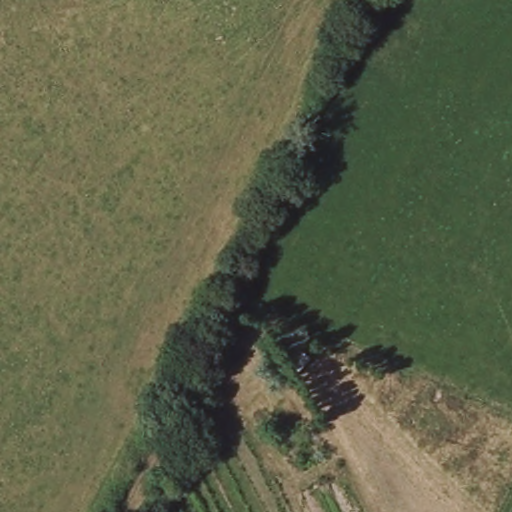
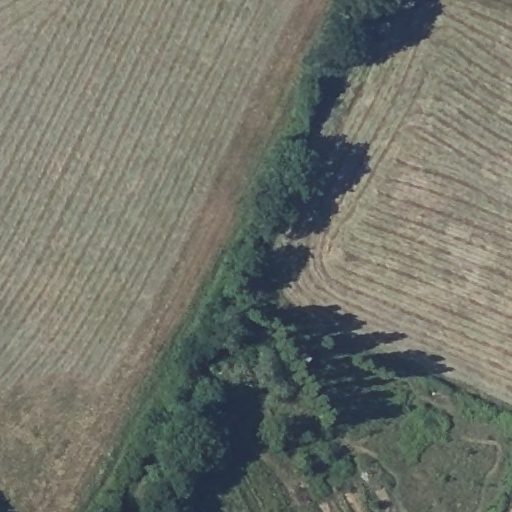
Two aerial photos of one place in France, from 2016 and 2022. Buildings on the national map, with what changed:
[]

